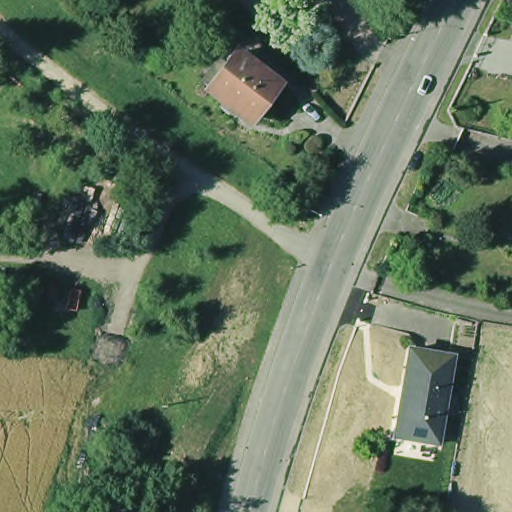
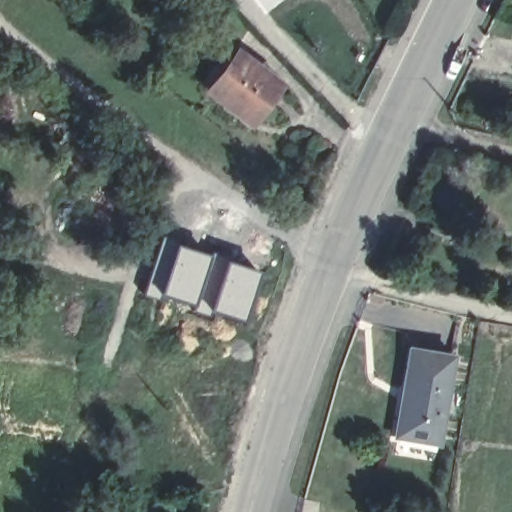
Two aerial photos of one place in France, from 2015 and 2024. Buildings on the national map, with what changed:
unchanged [(211,22),(198,8),(207,0),(218,0),(226,9),(211,22)]
unchanged [(232,110),(238,103),(219,90),(221,87),(216,83),(231,64),(236,68),(249,52),(291,85),(262,122),(246,110),(241,117),(232,110)]
new [(161,234),(213,252),(193,306),(161,296),(159,299),(143,294),(161,234)]
new [(193,306),(213,252),(261,269),(243,322),(209,312),(208,315),(192,310),(193,306)]
unchanged [(418,348),(460,355),(444,444),(401,436),(407,400),(409,400),(418,348)]

